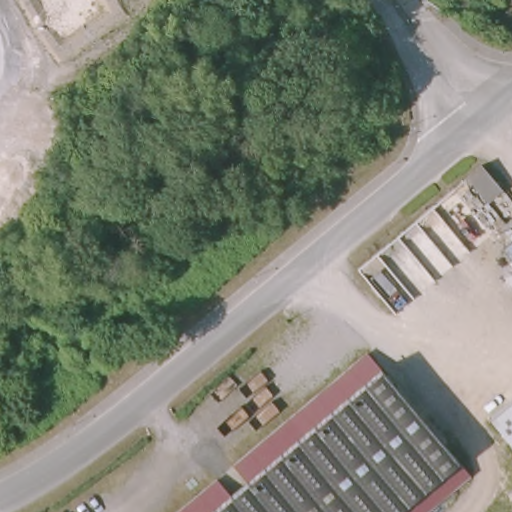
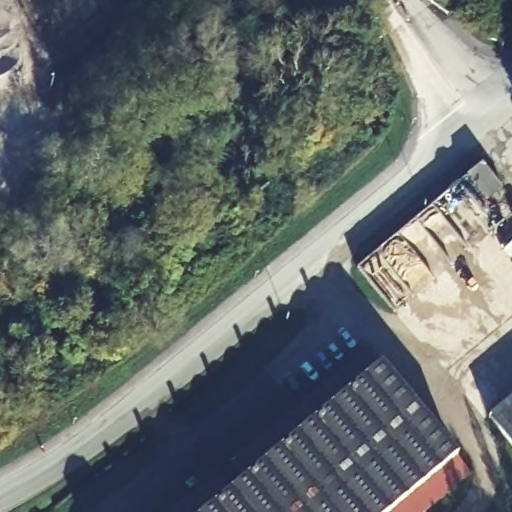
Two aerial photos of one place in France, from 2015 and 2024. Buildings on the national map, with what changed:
unchanged [(367,350),(469,471),(420,512),(171,512),(367,350)]
unchanged [(489,417),(512,399),(512,445),(489,417)]

